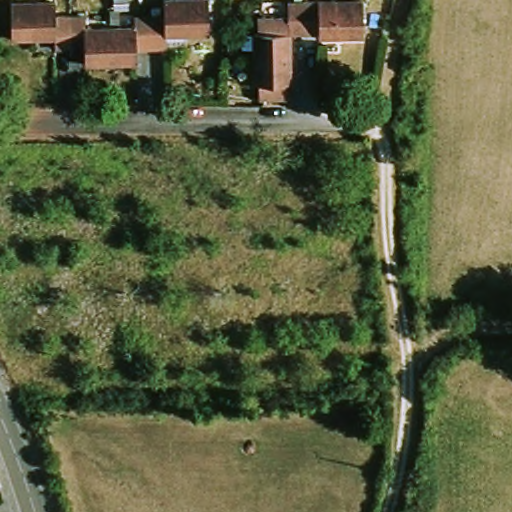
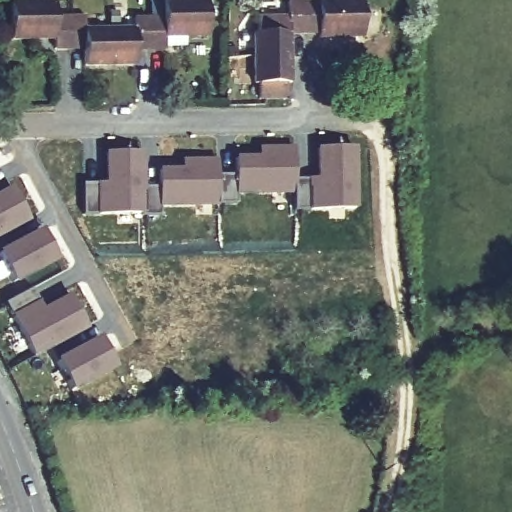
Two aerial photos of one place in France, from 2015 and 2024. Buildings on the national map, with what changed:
unchanged [(81,44),(52,45),(51,32),(34,33),(8,34),(7,0),(50,0),(51,12),(80,11),(80,24),(129,21),(129,8),(160,6),(160,0),(204,0),(205,25),(181,25),(161,26),(161,35),(130,36),(130,54),(81,56),(81,44)]
unchanged [(252,78),(247,78),(245,29),(252,29),(252,12),(282,11),(282,0),(356,0),(358,30),(325,33),(313,34),(313,26),(283,28),(285,76),(279,77),(280,92),(253,93),(252,78)]
new [(146,151),(146,185),(160,184),(161,168),(183,167),(183,159),(219,158),(219,174),(238,175),(237,156),(259,155),(259,146),(294,146),(295,179),(320,177),(319,148),(357,147),(359,208),(296,209),(296,193),(238,194),(238,202),(160,206),(160,214),(144,214),(143,212),(85,213),(84,183),(107,182),(107,152),(146,151)]
new [(41,226),(60,261),(17,286),(0,255),(0,192),(13,185),(31,220),(17,227),(22,236),(41,226)]
new [(52,348),(36,357),(6,301),(33,287),(45,308),(73,294),(90,327),(74,336),(80,346),(100,336),(118,369),(74,392),(56,359),(52,348)]

